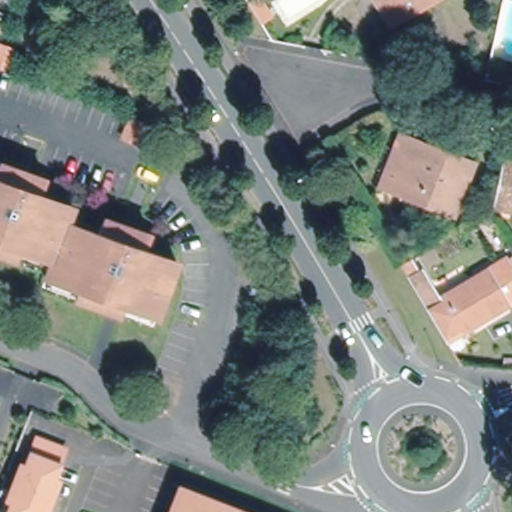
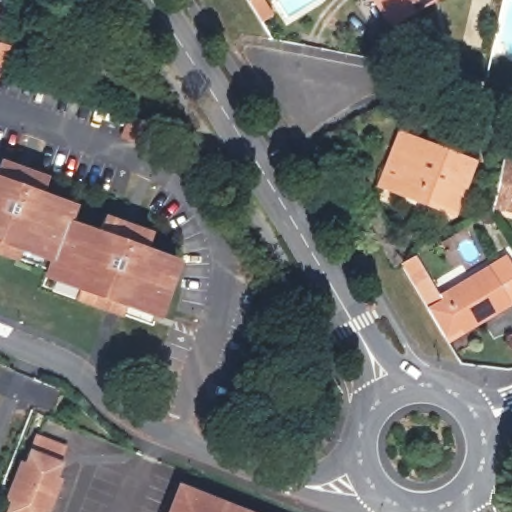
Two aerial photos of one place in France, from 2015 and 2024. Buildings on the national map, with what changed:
unchanged [(376,0),(420,0),(389,20),(376,0)]
unchanged [(38,43),(29,68),(15,62),(23,40),(38,43)]
unchanged [(166,126),(161,142),(151,138),(158,123),(166,126)]
unchanged [(467,161),(452,208),(384,185),(399,139),(467,161)]
unchanged [(141,237),(176,251),(154,308),(120,295),(116,303),(74,287),(76,278),(46,266),(51,253),(16,240),(13,251),(0,246),(0,155),(42,171),(37,185),(69,196),(65,208),(99,221),(103,211),(145,228),(141,237)]
unchanged [(503,156),(512,158),(512,208),(492,206),(503,156)]
unchanged [(408,277),(421,269),(440,304),(449,298),(445,292),(499,260),(512,280),(512,300),(463,329),(460,325),(444,338),(429,312),(408,277)]
unchanged [(37,430),(69,443),(40,512),(6,512),(37,430)]
unchanged [(180,482),(229,500),(235,511),(242,506),(259,512),(169,512),(180,482)]

